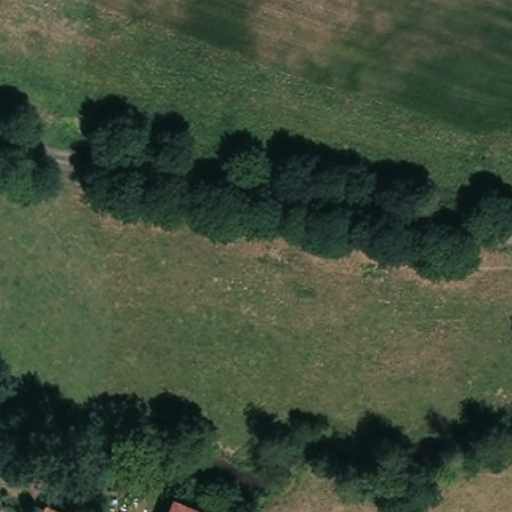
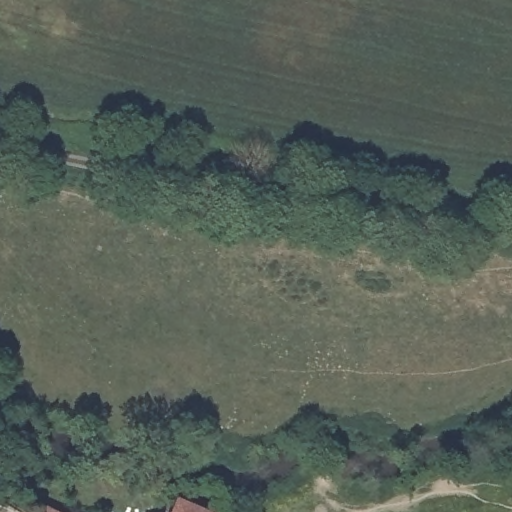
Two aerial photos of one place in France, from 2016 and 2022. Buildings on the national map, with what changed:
unchanged [(178,503),(199,512),(174,512),(178,503)]
unchanged [(6,509),(7,506),(16,512),(0,512),(0,506),(6,509)]
unchanged [(43,510),(51,512),(42,512),(43,510)]

